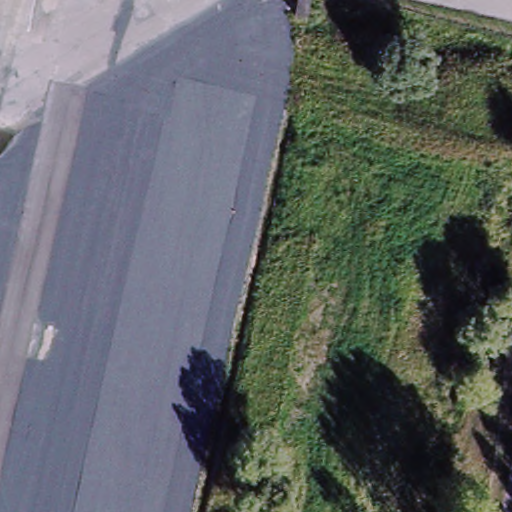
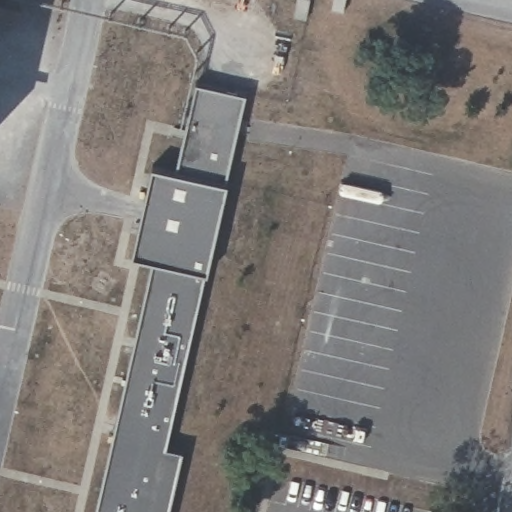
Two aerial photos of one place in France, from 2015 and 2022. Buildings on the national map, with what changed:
demolished [(48,0),(47,12),(40,12),(34,34),(0,25),(0,0),(48,0)]
new [(247,92),(223,181),(230,182),(207,272),(166,447),(183,449),(168,512),(97,512),(153,257),(135,251),(154,165),(177,170),(196,82),(247,92)]
demolished [(211,124),(190,225),(137,214),(158,112),(211,124)]

